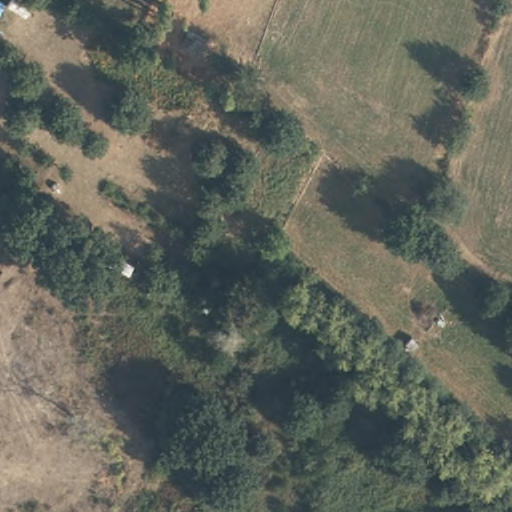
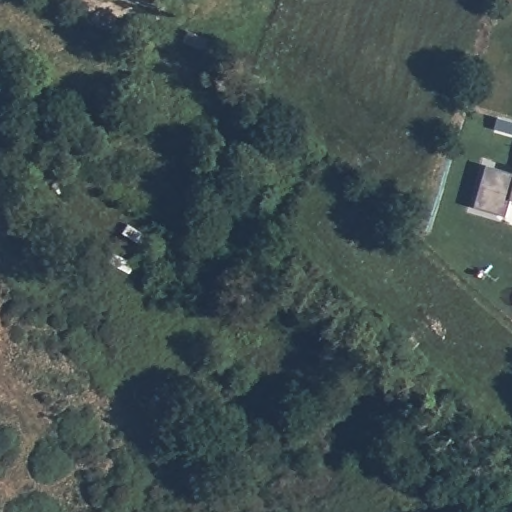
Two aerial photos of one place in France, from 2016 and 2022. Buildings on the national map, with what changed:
new [(512,177),(512,205),(506,203),(501,220),(469,210),(481,168),(512,177)]
unchanged [(213,272),(224,277),(204,313),(191,309),(213,272)]

